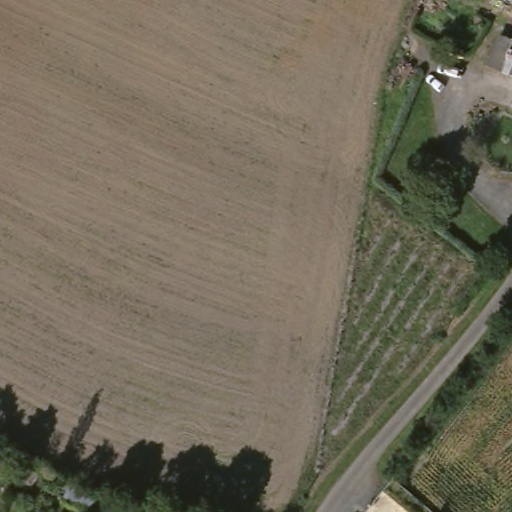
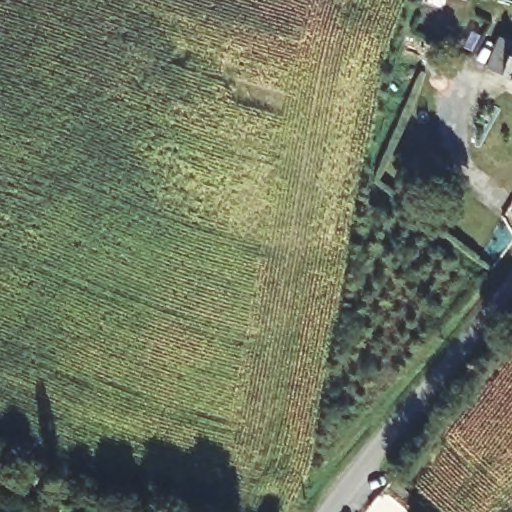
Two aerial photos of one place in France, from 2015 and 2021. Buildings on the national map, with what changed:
unchanged [(498,69),(482,62),(497,31),(512,39),(512,75),(498,69)]

